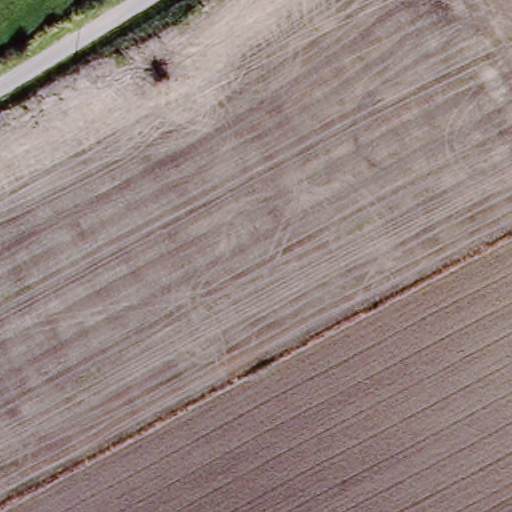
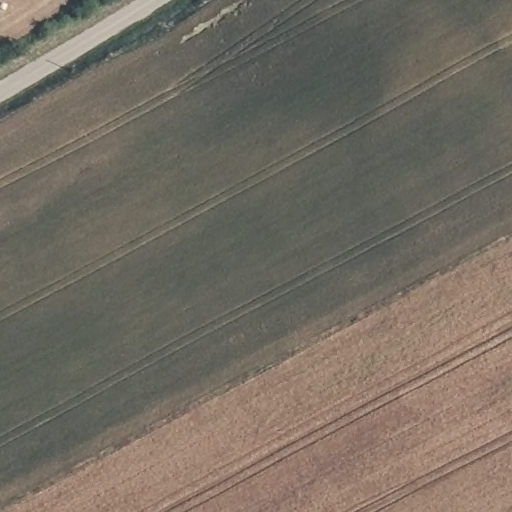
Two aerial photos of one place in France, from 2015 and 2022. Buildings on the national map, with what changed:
[]

